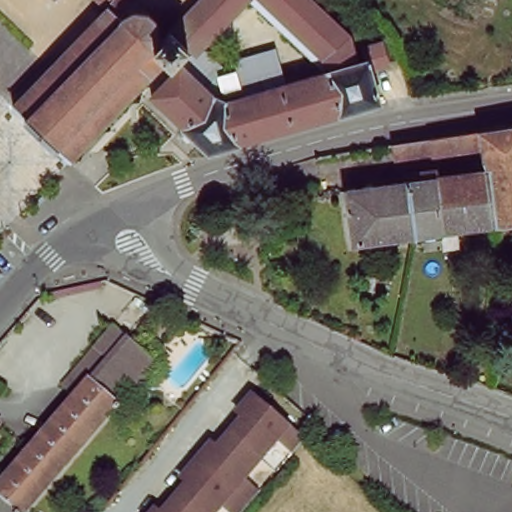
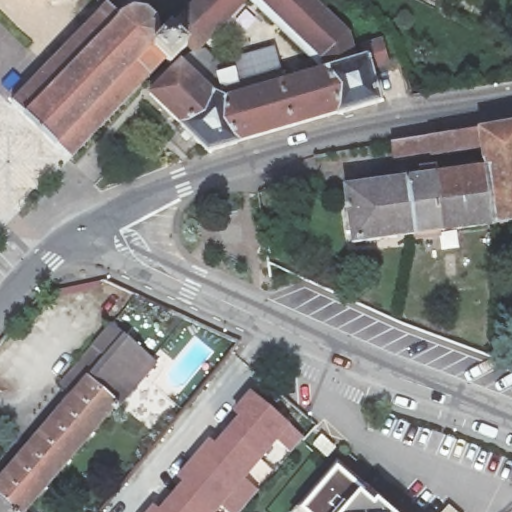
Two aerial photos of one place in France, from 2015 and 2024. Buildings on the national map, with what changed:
unchanged [(171,64),(168,59),(71,160),(13,104),(108,6),(101,0),(138,0),(171,29),(188,45),(171,64)]
unchanged [(369,57),(366,46),(387,40),(393,62),(374,68),(381,94),(383,101),(344,112),(240,143),(208,151),(183,128),(185,126),(153,94),(184,63),(215,94),(229,99),(329,69),(326,56),(264,0),(316,0),(349,31),(359,60),(369,57)]
unchanged [(188,45),(171,29),(198,0),(243,0),(194,50),(188,45)]
unchanged [(351,248),(343,194),(419,182),(418,174),(435,172),(436,179),(484,172),(480,150),(394,164),(392,148),(469,135),(512,128),(512,223),(351,248)]
unchanged [(0,486),(71,399),(58,387),(70,372),(108,327),(154,367),(116,412),(113,409),(26,512),(0,512),(0,486)]
unchanged [(185,483),(173,471),(203,441),(211,448),(243,413),(236,404),(248,391),(303,438),(291,449),(275,439),(247,478),(261,489),(243,512),(227,512),(220,507),(216,512),(158,512),(185,483)]
new [(365,491),(359,497),(373,509),(377,504),(386,512),(303,512),(301,511),(338,469),(365,491)]
unchanged [(148,507),(157,512),(145,512),(148,507)]

